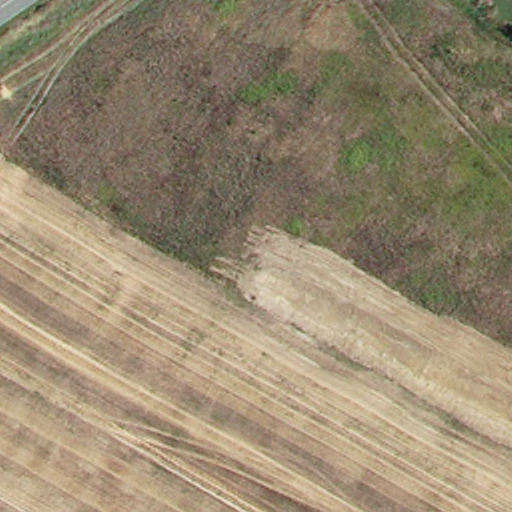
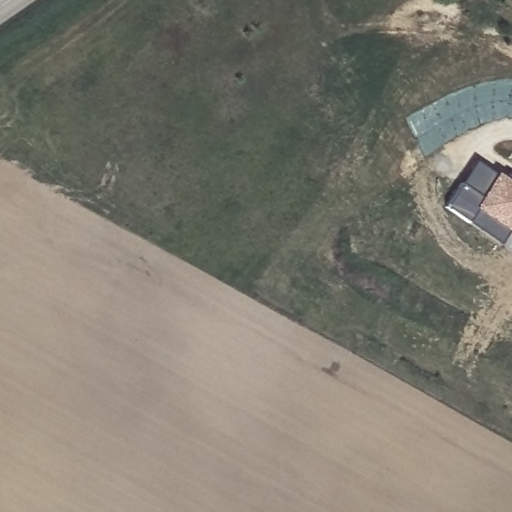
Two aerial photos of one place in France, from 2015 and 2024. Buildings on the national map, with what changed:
new [(442,206),(460,182),(476,160),(497,175),(481,198),(497,175),(512,185),(512,223),(505,233),(496,245),(465,223),(442,206)]

